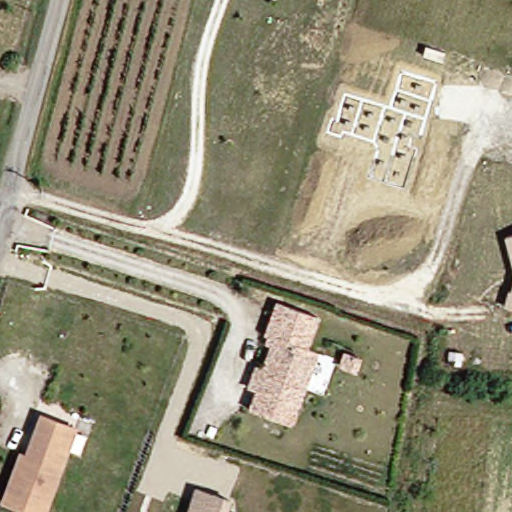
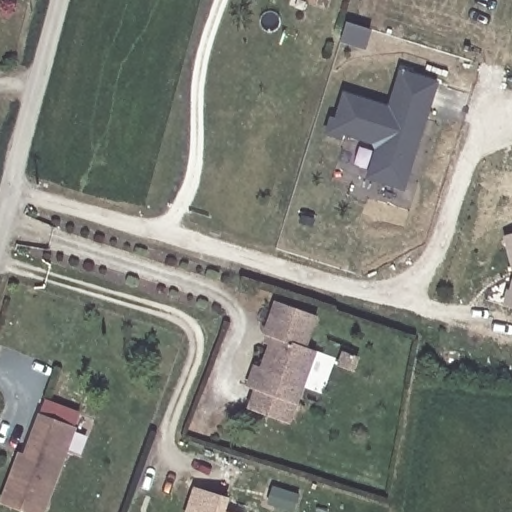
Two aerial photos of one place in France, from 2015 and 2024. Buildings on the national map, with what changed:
new [(438,81),(406,191),(367,179),(375,151),(372,144),(343,135),(342,139),(326,134),(330,117),(335,118),(343,93),(389,106),(399,70),(438,81)]
unchanged [(505,236),(512,235),(512,265),(505,236)]
unchanged [(504,308),(508,292),(511,292),(512,288),(512,310),(504,308)]
unchanged [(249,407),(256,387),(250,385),(258,365),(264,367),(274,336),(266,333),(276,300),(317,314),(306,345),(315,350),(297,402),(289,422),(249,407)]
unchanged [(354,354),(349,369),(339,365),(343,351),(354,354)]
unchanged [(46,512),(22,512),(2,505),(14,475),(20,476),(39,417),(73,428),(46,512)]
unchanged [(223,493),(220,506),(238,511),(238,512),(184,512),(191,484),(223,493)]

